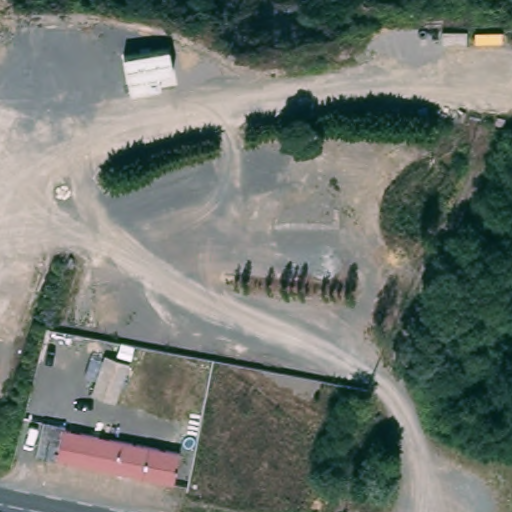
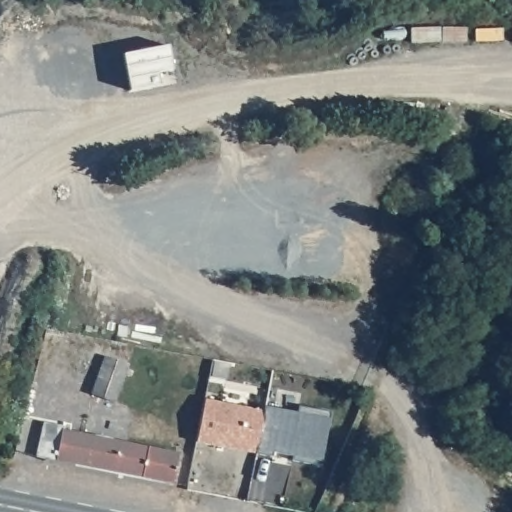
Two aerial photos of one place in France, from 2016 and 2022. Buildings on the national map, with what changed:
unchanged [(123,56),(169,47),(173,70),(158,74),(159,86),(130,90),(123,56)]
unchanged [(114,407),(88,397),(107,356),(129,365),(114,407)]
new [(330,411),(321,464),(294,459),(294,455),(275,452),(274,456),(197,442),(206,398),(264,411),(265,406),(297,412),(298,406),(330,411)]
unchanged [(43,429),(60,434),(62,424),(179,450),(172,486),(36,459),(43,429)]

